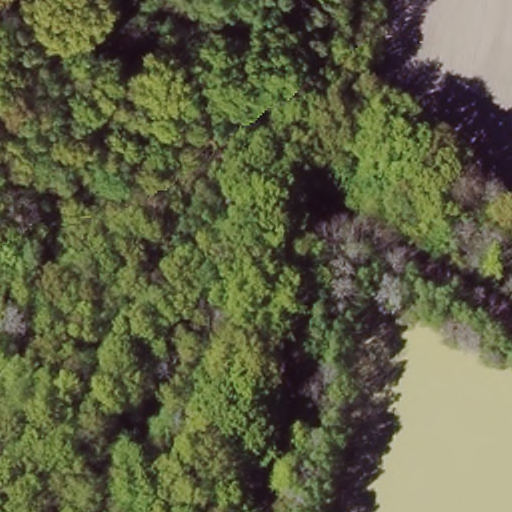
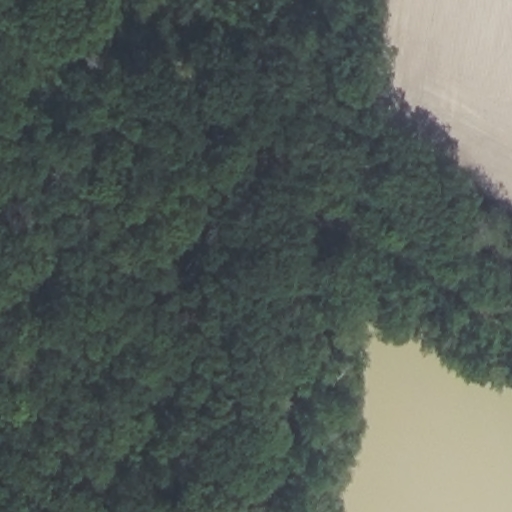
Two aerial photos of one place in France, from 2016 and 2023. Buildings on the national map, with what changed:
unchanged [(234,139),(256,196),(224,211),(209,155),(234,139)]

